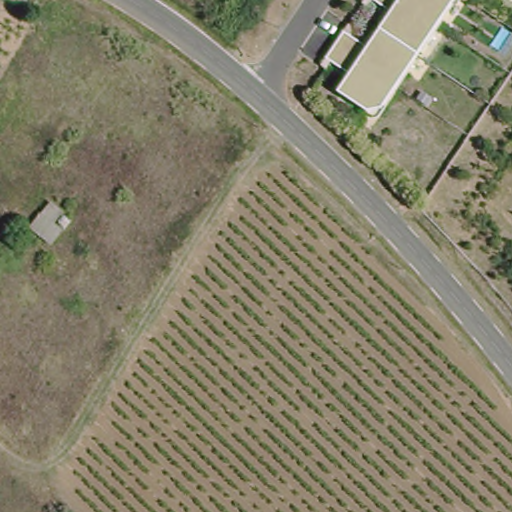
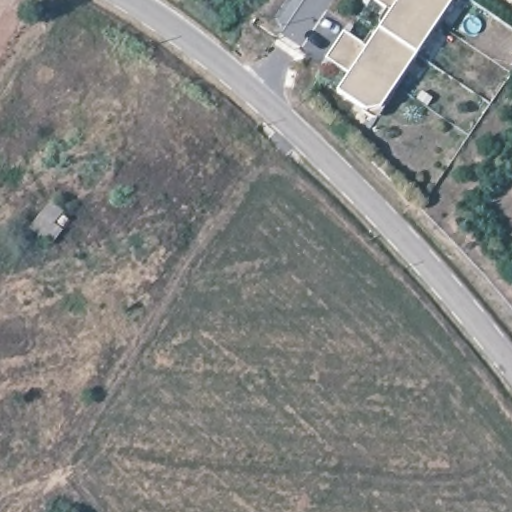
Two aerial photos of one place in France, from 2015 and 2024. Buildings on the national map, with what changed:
unchanged [(327,80),(340,65),(320,50),(335,25),(357,37),(382,2),(379,0),(467,0),(387,120),(327,80)]
unchanged [(50,240),(30,224),(50,199),(62,209),(55,219),(62,226),(50,240)]

